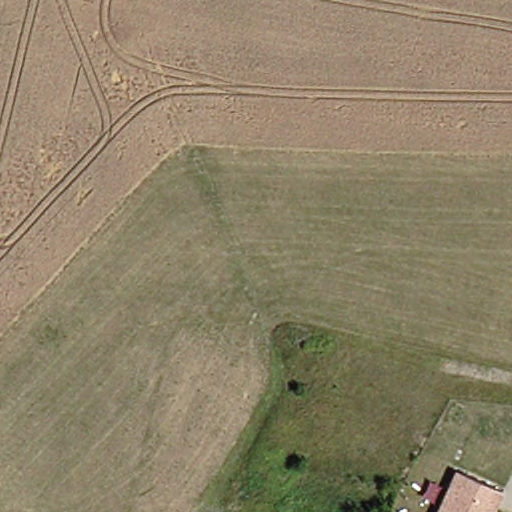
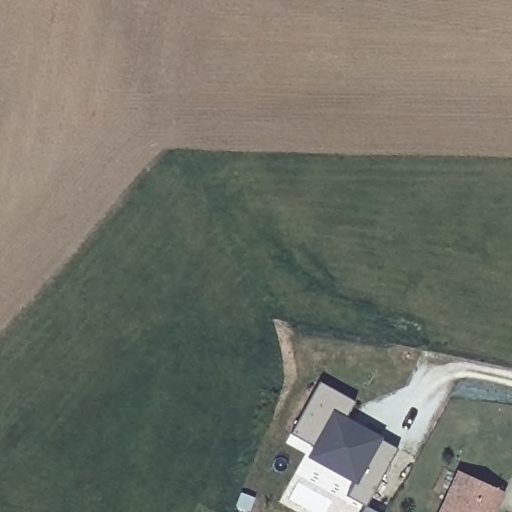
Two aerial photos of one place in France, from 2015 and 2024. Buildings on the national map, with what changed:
new [(356,402),(346,419),(384,438),(382,441),(397,448),(366,507),(346,497),(353,485),(306,459),(314,446),(290,434),(320,382),(356,402)]
unchanged [(502,493),(493,512),(440,512),(457,475),(502,493)]

